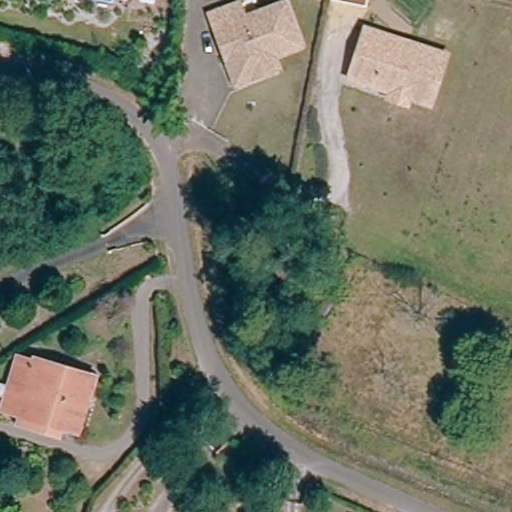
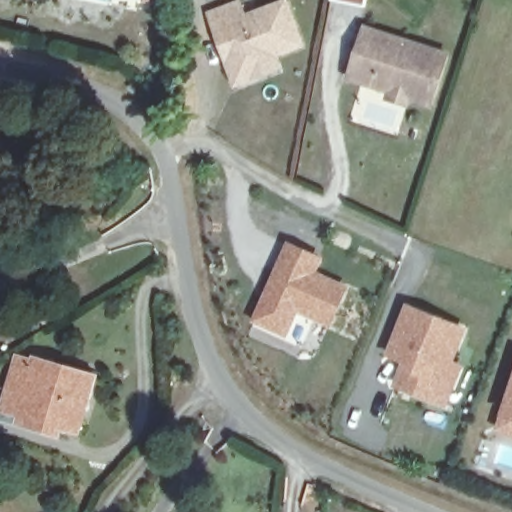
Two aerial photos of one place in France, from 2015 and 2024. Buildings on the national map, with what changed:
unchanged [(340,0),(366,0),(365,4),(340,0)]
unchanged [(257,72),(233,80),(223,52),(219,41),(209,12),(238,2),(243,16),(285,2),(300,44),(271,54),(275,66),(257,72)]
unchanged [(384,100),(386,93),(367,86),(345,78),(363,30),(370,33),(444,59),(425,106),(403,99),(400,105),(384,100)]
new [(325,257),(318,270),(350,286),(331,328),(298,313),(286,338),(250,322),(286,241),(325,257)]
new [(467,329),(455,361),(465,365),(446,408),(392,388),(403,363),(385,356),(405,302),(467,329)]
unchanged [(21,425),(25,414),(10,410),(12,401),(23,360),(35,364),(38,359),(66,367),(65,372),(99,380),(84,430),(69,426),(66,437),(21,425)]
new [(512,379),(512,435),(496,430),(512,379)]

